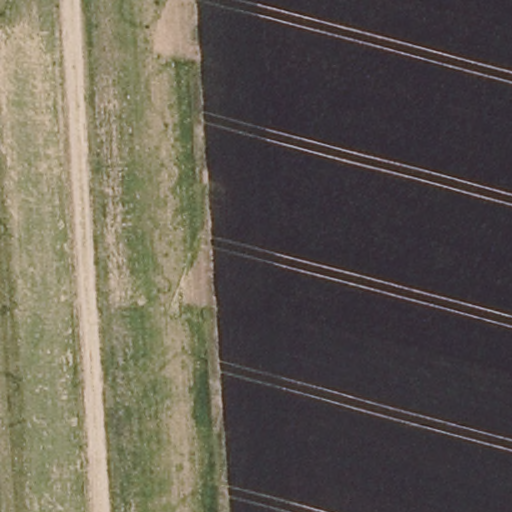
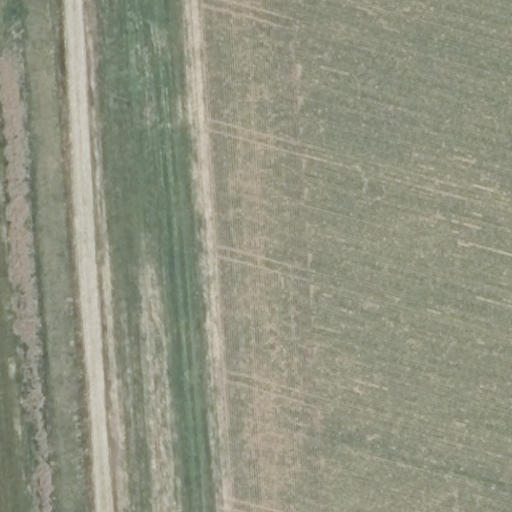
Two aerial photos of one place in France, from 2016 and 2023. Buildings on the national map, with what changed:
[]

